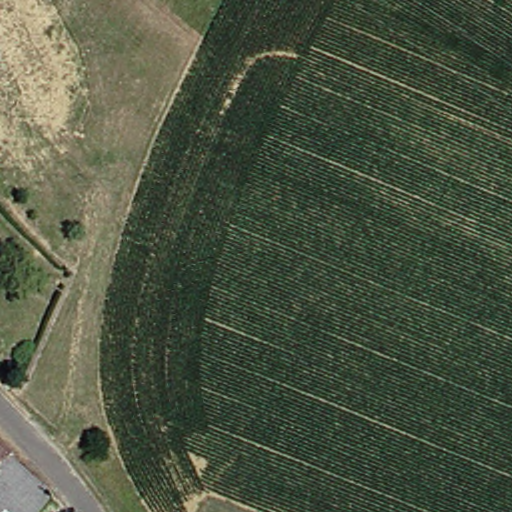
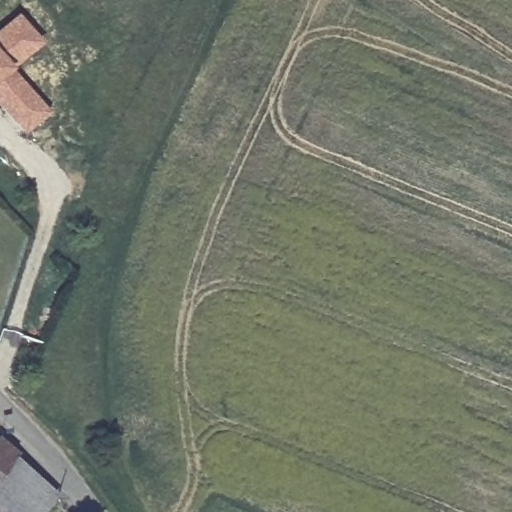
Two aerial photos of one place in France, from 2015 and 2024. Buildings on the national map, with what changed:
new [(9,70),(46,115),(20,136),(0,112),(0,26),(13,15),(38,45),(9,70)]
unchanged [(9,460),(6,463),(0,470),(0,452),(9,460)]
unchanged [(49,498),(38,512),(0,512),(0,470),(6,463),(49,498)]

